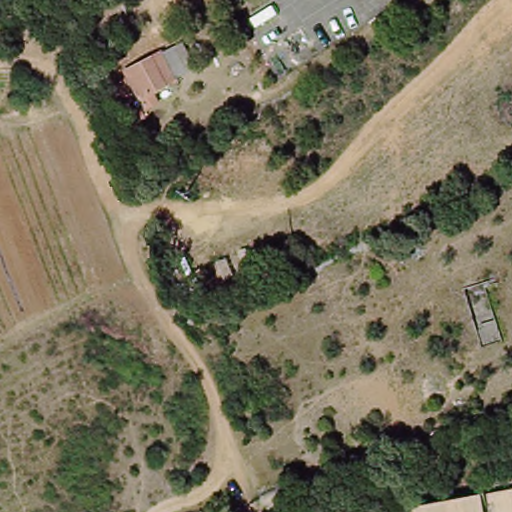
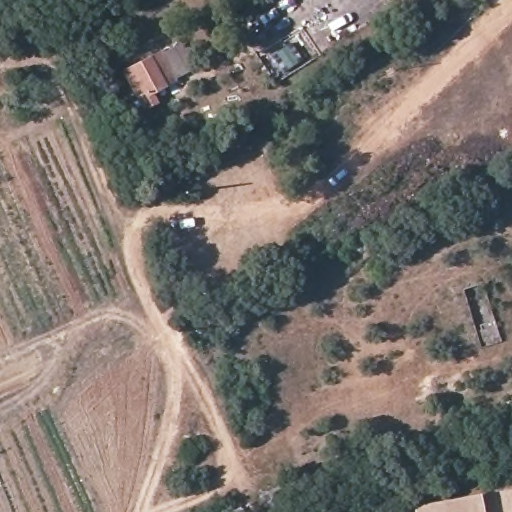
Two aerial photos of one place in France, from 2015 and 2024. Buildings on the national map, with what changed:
unchanged [(129,69),(150,58),(161,52),(180,86),(169,92),(149,103),(129,69)]
unchanged [(489,512),(485,495),(512,489),(512,512),(489,512)]
unchanged [(485,495),(489,512),(413,512),(413,510),(485,495)]

